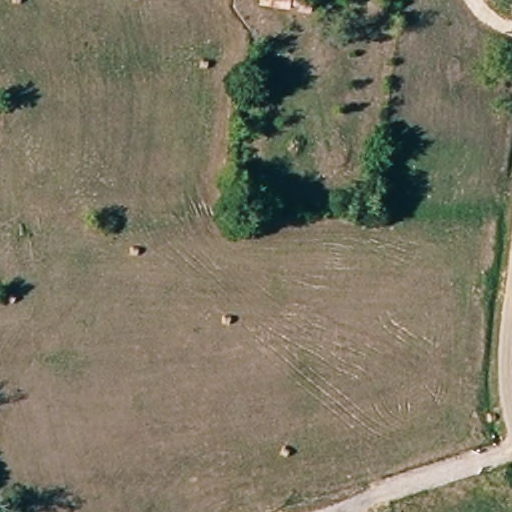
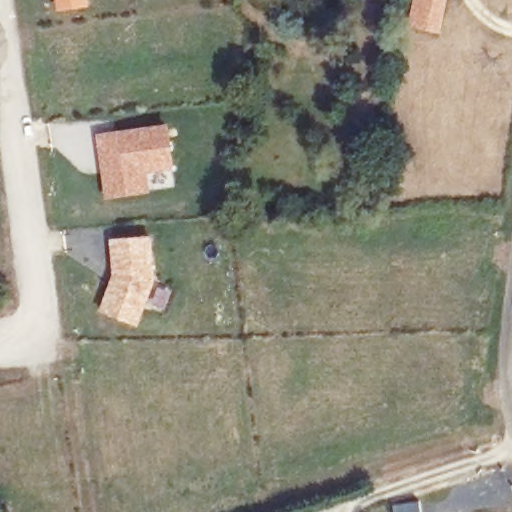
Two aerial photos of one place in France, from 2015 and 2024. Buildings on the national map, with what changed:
new [(56,11),(54,0),(88,0),(89,6),(56,11)]
new [(410,26),(415,0),(448,0),(441,33),(410,26)]
new [(176,169),(148,173),(151,193),(106,200),(98,134),(169,124),(176,169)]
new [(156,279),(139,325),(101,310),(114,275),(111,239),(153,235),(156,279)]

